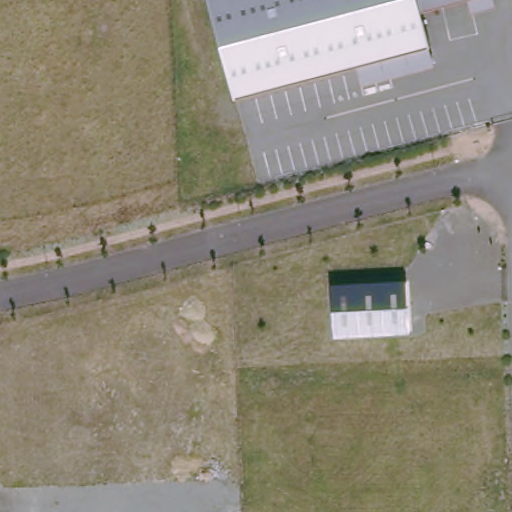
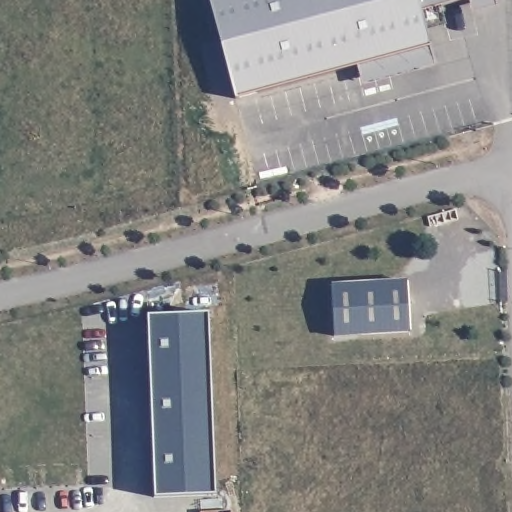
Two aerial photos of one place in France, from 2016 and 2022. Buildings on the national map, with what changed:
unchanged [(432,46),(238,97),(213,0),(465,0),(424,12),(432,46)]
unchanged [(337,336),(336,284),(409,279),(411,333),(337,336)]
new [(150,315),(209,314),(217,493),(157,496),(150,315)]

